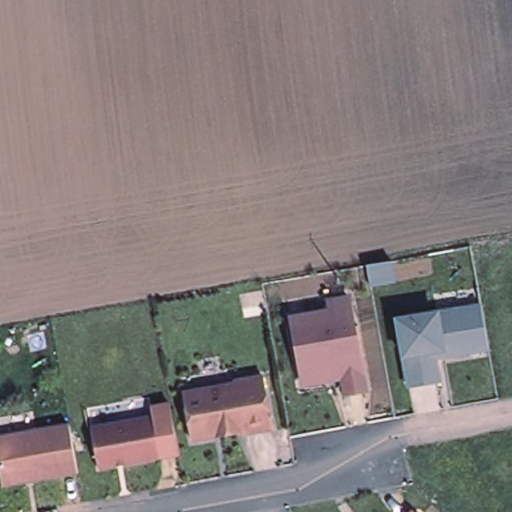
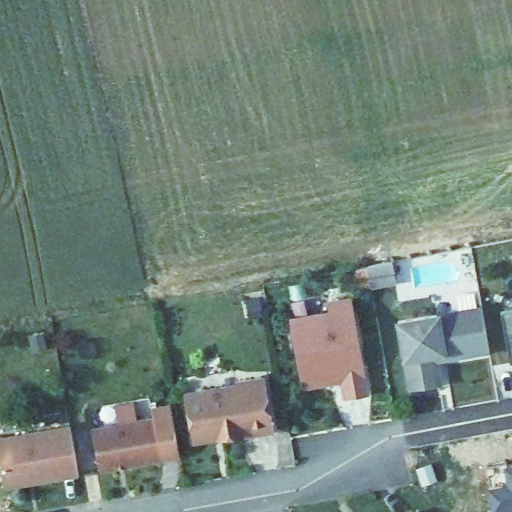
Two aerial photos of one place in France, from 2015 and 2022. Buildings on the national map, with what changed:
unchanged [(391,260),(395,281),(372,285),(368,264),(391,260)]
unchanged [(302,384),(292,323),(332,316),(330,305),(351,303),(366,396),(345,399),(343,383),(303,389),(302,384)]
unchanged [(436,382),(405,388),(394,320),(477,306),(485,348),(470,350),(431,358),(436,382)]
new [(512,361),(511,361),(502,310),(512,309),(512,361)]
unchanged [(196,439),(188,391),(240,383),(240,379),(265,374),(275,428),(250,433),(248,429),(218,434),(196,439)]
unchanged [(145,417),(165,413),(175,463),(155,467),(146,426),(145,417)]
unchanged [(146,426),(155,467),(94,478),(85,437),(146,426)]
unchanged [(71,429),(80,476),(4,489),(0,464),(0,441),(71,429)]
new [(488,491),(508,488),(505,469),(512,468),(512,512),(492,512),(488,491)]

